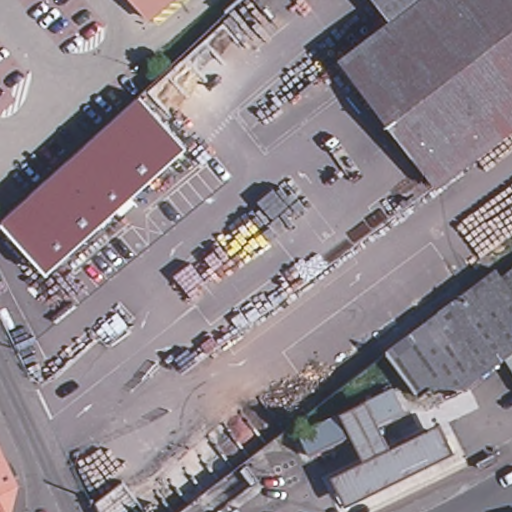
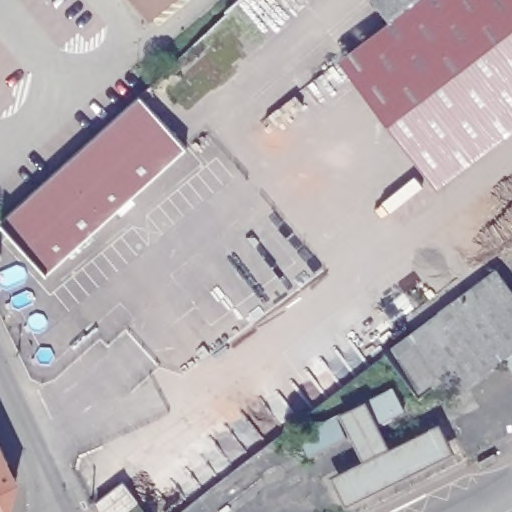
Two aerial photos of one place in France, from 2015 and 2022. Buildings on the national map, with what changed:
unchanged [(131,0),(168,0),(146,18),(131,0)]
unchanged [(337,61),(389,22),(417,0),(512,0),(512,127),(435,187),(337,61)]
unchanged [(389,22),(372,0),(417,0),(389,22)]
unchanged [(128,102),(140,92),(185,142),(45,268),(0,218),(0,217),(128,102)]
unchanged [(501,280),(512,295),(512,344),(470,286),(492,268),(501,280)]
unchanged [(512,295),(501,280),(512,272),(512,295)]
unchanged [(512,344),(512,348),(500,357),(456,296),(470,286),(512,344)]
unchanged [(500,357),(477,375),(452,340),(432,314),(456,296),(500,357)]
unchanged [(382,352),(395,342),(432,314),(452,340),(477,375),(462,386),(432,386),(428,386),(415,395),(382,352)]
unchanged [(337,501),(327,477),(358,459),(349,436),(307,455),(298,430),(389,387),(401,410),(375,423),(387,447),(435,428),(451,452),(337,501)]
unchanged [(3,481),(0,495),(0,473),(3,481)]
unchanged [(136,501),(121,512),(100,512),(95,501),(122,480),(136,501)]

